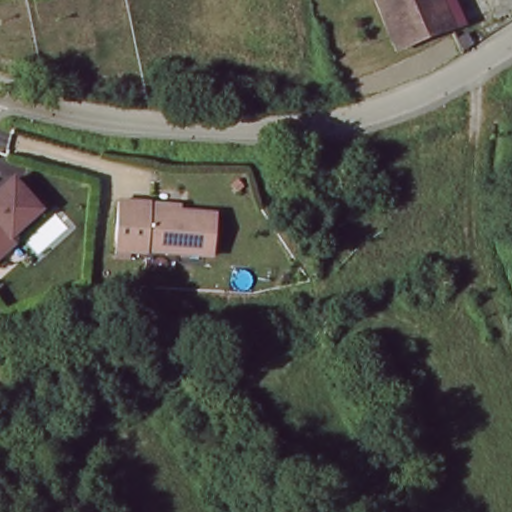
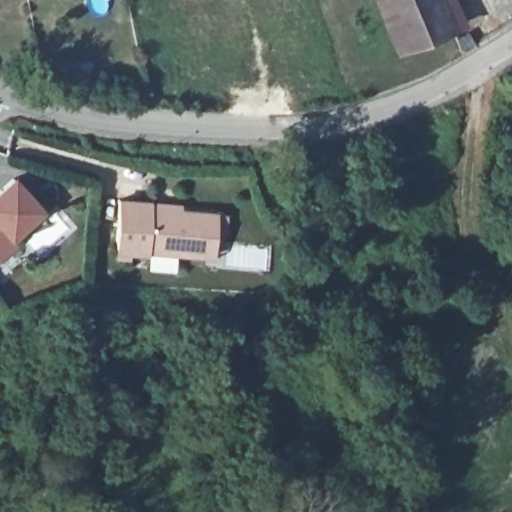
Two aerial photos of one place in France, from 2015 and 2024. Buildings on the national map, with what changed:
unchanged [(453,26),(395,49),(375,0),(442,0),(453,26)]
unchanged [(466,22),(453,26),(442,0),(456,0),(466,22)]
unchanged [(456,37),(467,31),(475,42),(462,50),(456,37)]
unchanged [(8,174),(35,204),(2,233),(7,239),(0,245),(0,181),(8,174)]
unchanged [(111,245),(115,196),(173,201),(172,206),(208,209),(205,250),(139,244),(139,247),(111,245)]

